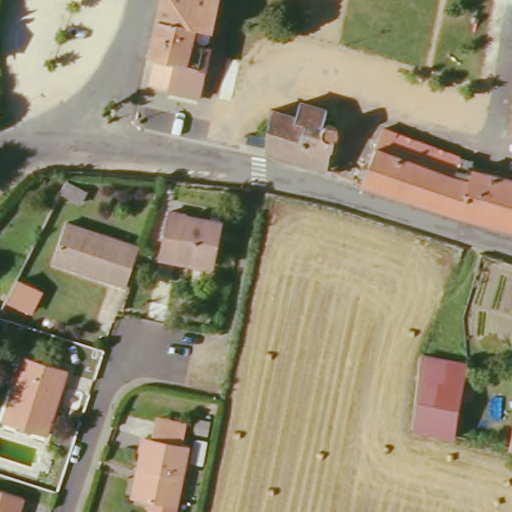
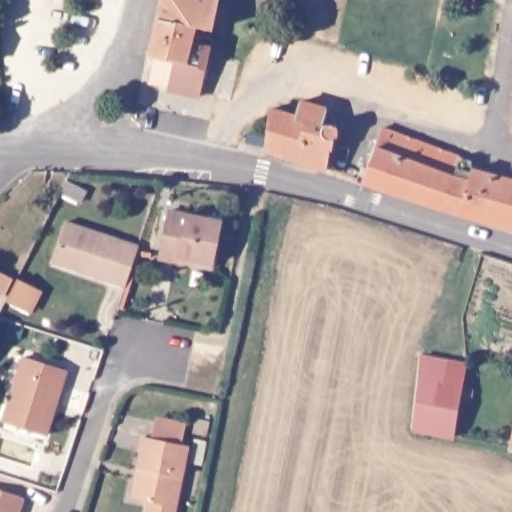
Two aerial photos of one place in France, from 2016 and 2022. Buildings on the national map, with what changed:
unchanged [(153,52),(164,0),(222,0),(215,32),(209,55),(206,68),(200,94),(171,87),(151,83),(156,53),(153,52)]
unchanged [(304,119),(308,106),(338,115),(333,129),(347,128),(351,129),(354,133),(354,137),(352,142),(349,145),(339,147),(331,171),(267,150),(277,110),(304,119)]
unchanged [(384,138),(481,168),(479,178),(512,187),(512,236),(469,224),(367,192),(384,138)]
unchanged [(220,264),(184,256),(183,263),(164,259),(174,212),(227,222),(220,264)]
unchanged [(53,261),(67,221),(140,247),(127,287),(53,261)]
unchanged [(14,277),(36,288),(26,310),(3,298),(14,277)]
unchanged [(461,438),(415,429),(424,357),(473,366),(461,438)]
unchanged [(47,440),(6,427),(26,359),(69,372),(47,440)]
unchanged [(146,468),(153,437),(160,439),(164,420),(192,426),(188,445),(195,447),(182,507),(181,512),(156,512),(158,502),(145,499),(139,498),(146,468)]
unchanged [(28,512),(0,512),(0,494),(31,505),(28,512)]

